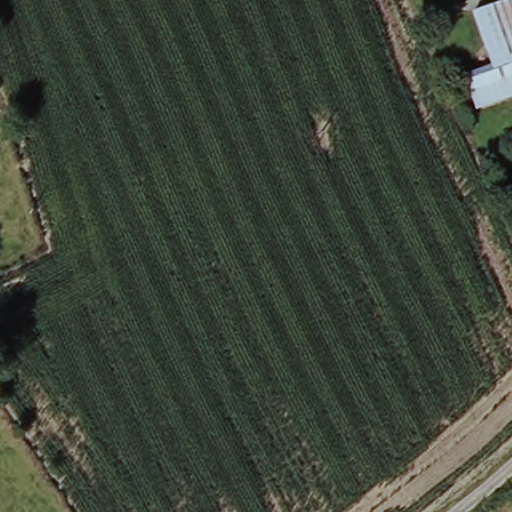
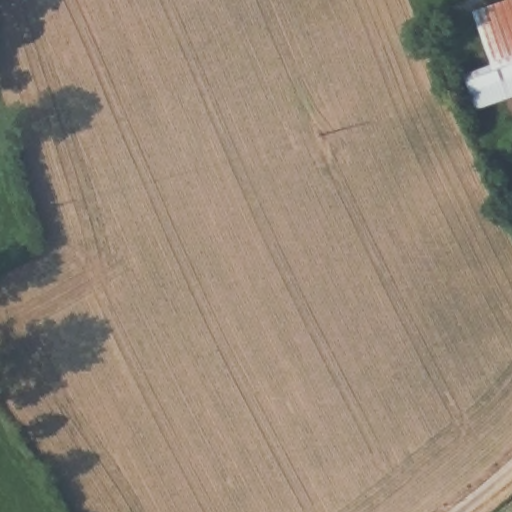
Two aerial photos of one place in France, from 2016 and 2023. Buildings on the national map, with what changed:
unchanged [(494,60),(476,12),(505,0),(512,0),(512,53),(494,60)]
unchanged [(478,110),(463,73),(494,60),(512,53),(512,96),(478,110)]

